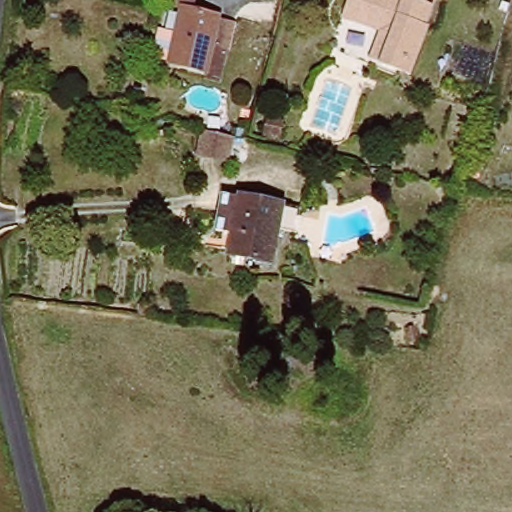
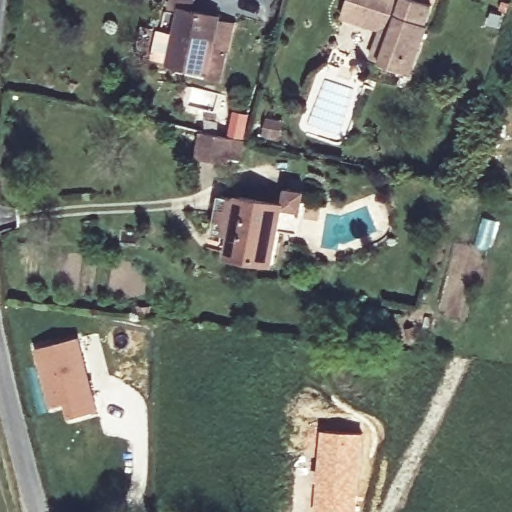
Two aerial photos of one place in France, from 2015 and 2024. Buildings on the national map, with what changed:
unchanged [(416,75),(384,65),(392,36),(345,19),(354,0),(439,0),(438,5),(416,75)]
unchanged [(186,23),(189,12),(223,21),(210,72),(177,64),(180,53),(164,48),(172,19),(186,23)]
unchanged [(259,138),(261,129),(279,133),(277,144),(259,138)]
unchanged [(199,160),(203,147),(207,136),(235,141),(232,153),(228,168),(199,160)]
unchanged [(236,232),(220,228),(228,195),(308,213),(303,233),(280,228),(274,264),(232,256),(236,232)]
new [(97,412),(69,419),(65,404),(50,408),(36,349),(79,337),(97,412)]
new [(316,476),(322,429),(364,433),(358,512),(314,512),(316,476)]

